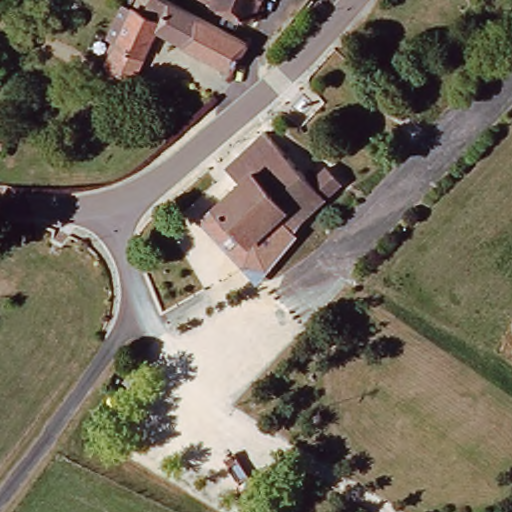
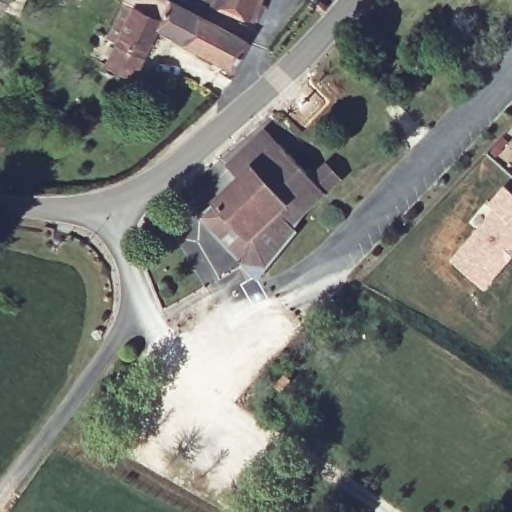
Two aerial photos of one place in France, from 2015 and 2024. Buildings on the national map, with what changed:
unchanged [(238,74),(160,38),(138,80),(111,67),(120,49),(110,44),(125,10),(135,15),(143,0),(163,0),(254,47),(238,74)]
unchanged [(219,5),(220,0),(265,0),(258,19),(219,5)]
unchanged [(0,12),(0,5),(2,6),(0,12)]
unchanged [(247,185),(234,171),(273,135),(286,149),(247,185)]
unchanged [(218,234),(207,222),(247,185),(286,149),(319,185),(333,172),(347,186),(298,231),(286,218),(257,244),(240,259),(218,234)]
new [(485,289),(452,259),(495,210),(490,205),(505,189),(512,194),(512,259),(485,289)]

